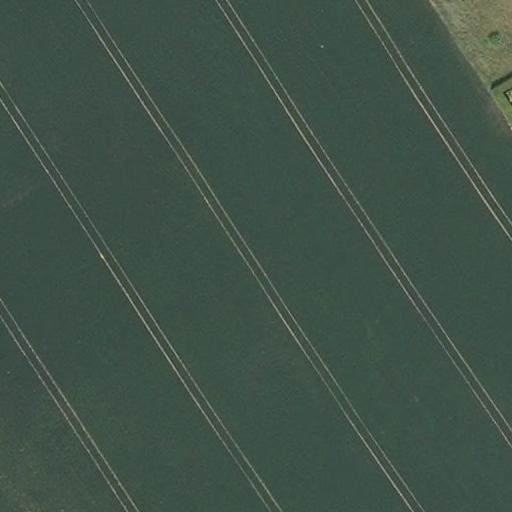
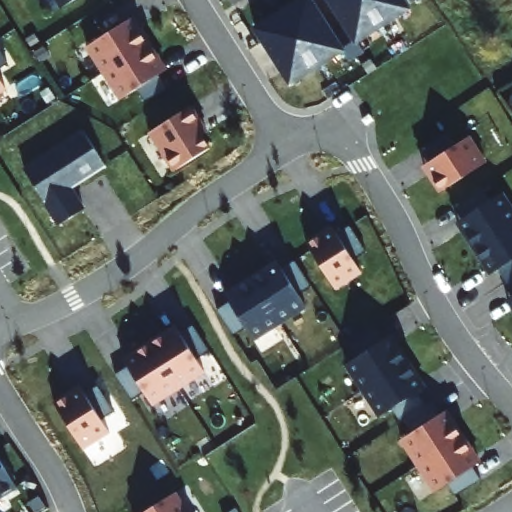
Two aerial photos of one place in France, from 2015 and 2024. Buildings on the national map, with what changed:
new [(63,7),(59,0),(75,0),(63,7)]
new [(413,8),(359,43),(364,52),(351,60),(346,52),(289,86),(254,29),(298,0),(316,0),(338,35),(346,30),(328,0),(407,0),(413,8)]
new [(129,22),(137,35),(142,31),(158,58),(154,61),(162,75),(122,99),(89,45),(129,22)]
new [(0,91),(0,76),(7,86),(0,91)]
new [(192,107),(200,120),(195,122),(210,147),(175,169),(154,132),(192,107)]
new [(442,190),(434,178),(440,174),(431,160),(432,160),(424,147),(449,131),(457,144),(469,135),(486,161),(442,190)]
new [(106,165),(73,185),(85,208),(61,225),(25,170),(84,133),(106,165)]
new [(457,203),(482,186),(490,200),(503,191),(512,206),(512,222),(475,246),(467,235),(473,230),(464,216),(465,216),(457,203)]
new [(498,268),(489,255),(483,258),(475,246),(512,222),(512,278),(507,281),(498,268)]
new [(308,242),(320,234),(324,240),(338,231),(338,232),(351,224),(367,250),(354,257),(362,270),(336,286),(308,242)]
new [(253,277),(265,269),(269,275),(283,266),(283,267),(296,258),(313,284),(299,292),(307,305),(281,321),(253,277)]
new [(255,338),(248,325),(234,334),(218,308),(232,300),(231,299),(245,290),(241,285),(253,277),(281,321),(255,338)]
new [(512,278),(512,289),(507,281),(512,278)]
new [(151,341),(164,334),(168,340),(181,331),(182,332),(196,323),(209,345),(195,353),(206,370),(180,386),(151,341)]
new [(349,362),(361,354),(353,341),(378,325),(386,338),(387,337),(396,351),(402,347),(410,359),(366,387),(349,362)]
new [(154,403),(146,390),(133,399),(117,373),(130,365),(130,364),(143,355),(140,350),(151,341),(180,386),(154,403)]
new [(418,371),(412,375),(421,389),(420,390),(428,402),(403,419),(395,406),(383,414),(366,387),(410,359),(418,371)]
new [(57,402),(69,395),(73,401),(86,392),(87,393),(100,385),(116,410),(103,418),(111,430),(85,447),(57,402)]
new [(403,438),(416,430),(407,416),(432,400),(450,427),(456,423),(465,436),(420,464),(403,438)]
new [(420,464),(465,436),(473,448),(466,452),(475,466),(474,466),(482,479),(457,495),(449,482),(437,490),(420,464)]
new [(0,495),(0,460),(16,485),(0,495)]
new [(187,512),(143,512),(175,492),(187,512)]

